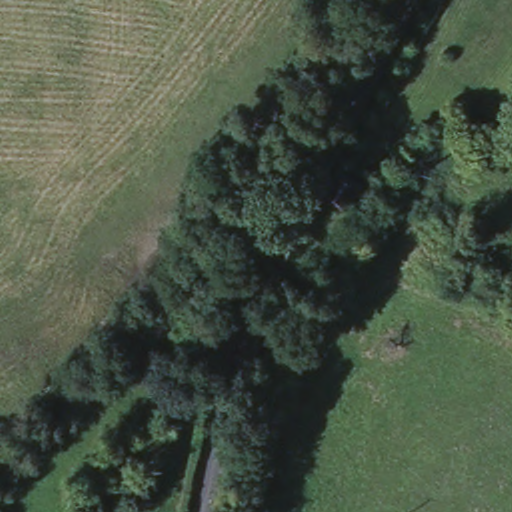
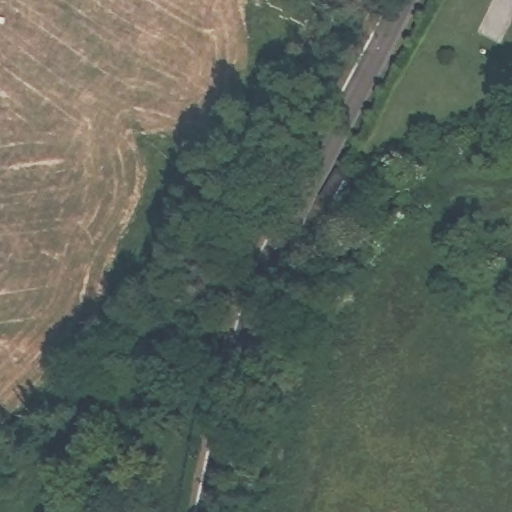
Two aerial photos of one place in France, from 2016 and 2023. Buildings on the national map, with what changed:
unchanged [(344,168),(369,183),(354,215),(327,201),(344,168)]

